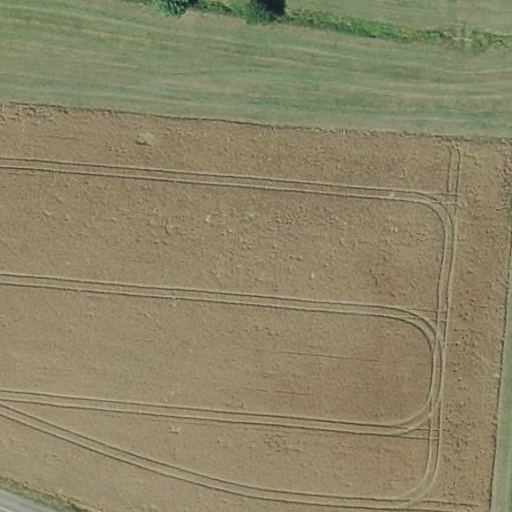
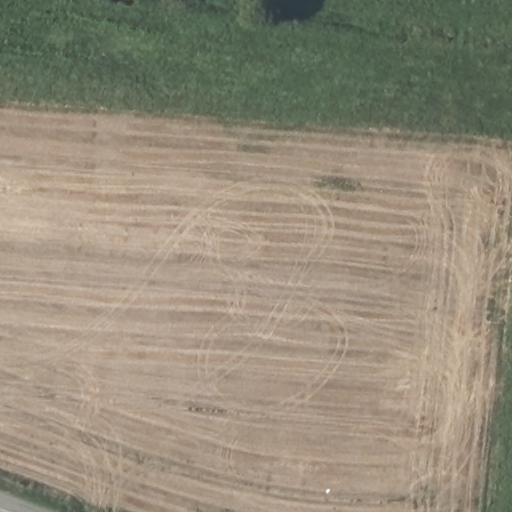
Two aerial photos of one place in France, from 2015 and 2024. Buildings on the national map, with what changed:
[]

